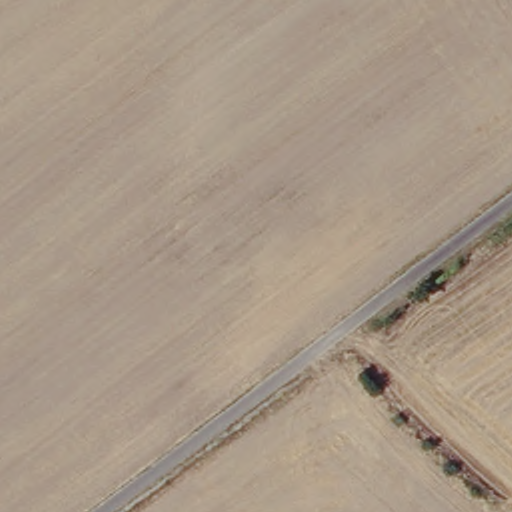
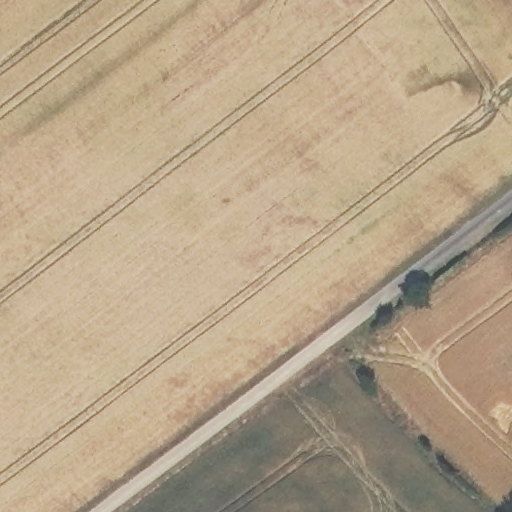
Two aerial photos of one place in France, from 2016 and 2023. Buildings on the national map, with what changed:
[]

